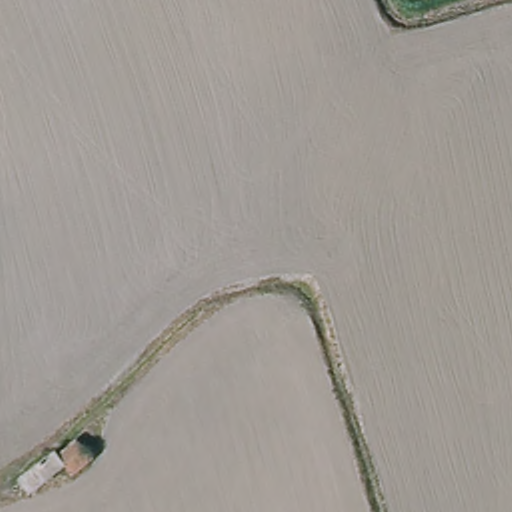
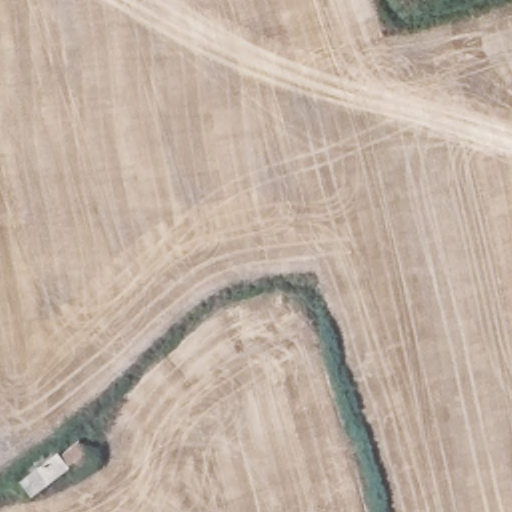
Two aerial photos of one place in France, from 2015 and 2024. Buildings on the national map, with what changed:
unchanged [(91,462),(67,479),(63,471),(27,498),(18,486),(76,443),(91,462)]

